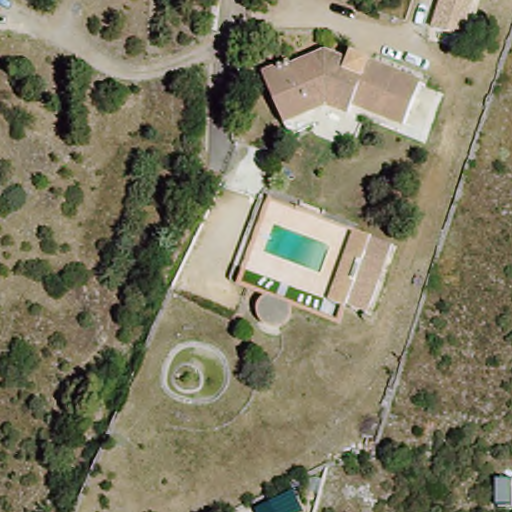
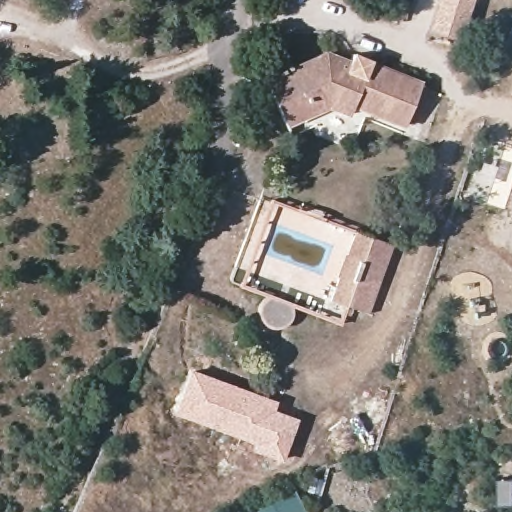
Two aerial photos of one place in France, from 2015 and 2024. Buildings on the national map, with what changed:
unchanged [(465,36),(435,26),(444,0),(477,0),(465,36)]
unchanged [(406,123),(354,104),(350,113),(329,105),(289,123),(265,71),(291,60),(294,66),(328,51),(352,60),(355,53),(422,79),(406,123)]
unchanged [(376,237),(351,306),(334,300),(358,231),(376,237)]
new [(265,294),(294,305),(288,324),(268,327),(258,311),(265,294)]
new [(191,367),(277,400),(275,408),(299,418),(281,462),(251,449),(253,445),(171,414),(191,367)]
new [(511,475),(511,503),(497,503),(497,475),(511,475)]
new [(307,512),(261,512),(260,509),(296,490),(307,512)]

